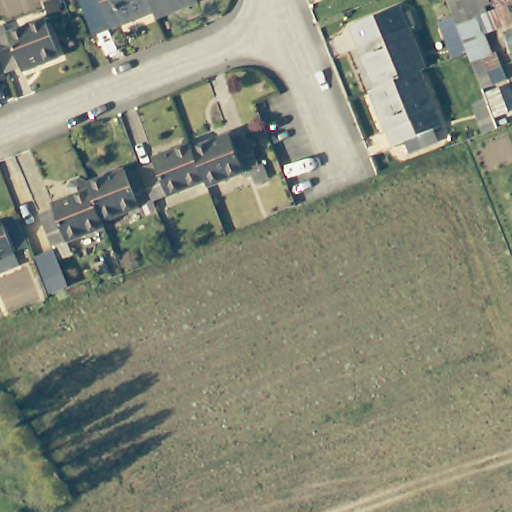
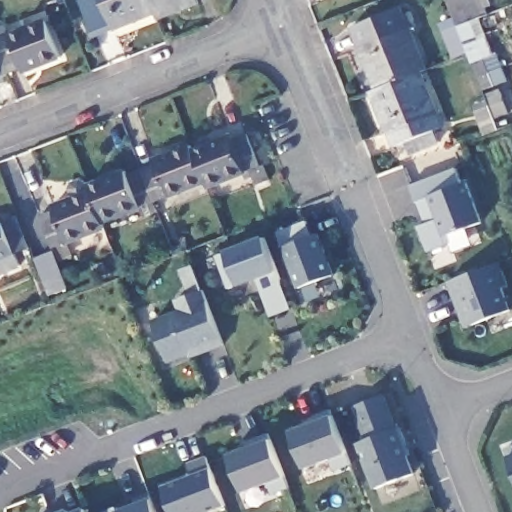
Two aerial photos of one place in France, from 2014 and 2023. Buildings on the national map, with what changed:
unchanged [(110,25),(105,12),(91,17),(85,0),(149,0),(152,8),(110,25)]
unchanged [(190,0),(154,14),(152,8),(149,0),(190,0)]
unchanged [(376,90),(351,27),(401,8),(426,70),(419,72),(376,90)]
unchanged [(44,20),(58,58),(19,74),(16,67),(2,72),(0,66),(0,38),(44,20)]
unchanged [(470,60),(484,55),(490,70),(509,122),(497,127),(477,75),(470,60)]
unchanged [(2,72),(0,73),(0,66),(2,72)]
unchanged [(376,90),(419,72),(441,130),(397,147),(392,132),(387,135),(371,92),(376,90)]
unchanged [(209,183),(198,155),(235,140),(236,143),(250,137),(263,168),(211,189),(209,183)]
unchanged [(198,155),(209,183),(157,202),(145,174),(160,167),(158,164),(195,148),(198,155)]
new [(460,184),(468,181),(481,224),(446,235),(449,245),(427,252),(417,226),(425,224),(417,201),(415,201),(409,184),(455,169),(460,184)]
unchanged [(104,223),(92,194),(90,188),(130,174),(132,179),(145,174),(157,202),(104,223)]
unchanged [(56,249),(43,216),(57,211),(56,207),(92,194),(104,223),(106,229),(56,249)]
new [(316,282),(320,296),(308,300),(302,289),(298,287),(277,232),(306,221),(312,236),(320,234),(333,275),(316,282)]
new [(291,308),(271,317),(257,278),(229,287),(215,256),(263,236),(291,308)]
unchanged [(4,252),(0,254),(0,241),(4,252)]
new [(53,250),(69,292),(49,300),(33,258),(53,250)]
new [(508,285),(502,287),(510,310),(465,327),(448,281),(499,261),(508,285)]
unchanged [(224,345),(191,358),(190,355),(170,363),(151,319),(177,308),(174,300),(188,293),(179,270),(192,264),(224,345)]
new [(357,442),(364,440),(352,405),(385,395),(415,475),(374,487),(357,442)]
new [(351,464),(334,470),(330,459),(305,470),(290,430),(331,415),(351,464)]
new [(288,489),(272,494),(268,482),(241,491),(228,453),(269,438),(288,489)]
new [(512,467),(504,447),(512,445),(512,467)]
new [(160,485),(193,473),(189,463),(206,456),(224,506),(208,512),(170,512),(160,485)]
new [(116,506),(117,510),(135,502),(134,498),(149,493),(156,512),(100,512),(116,506)]
new [(86,512),(69,512),(84,507),(86,512)]
new [(66,508),(67,512),(56,512),(66,508)]

